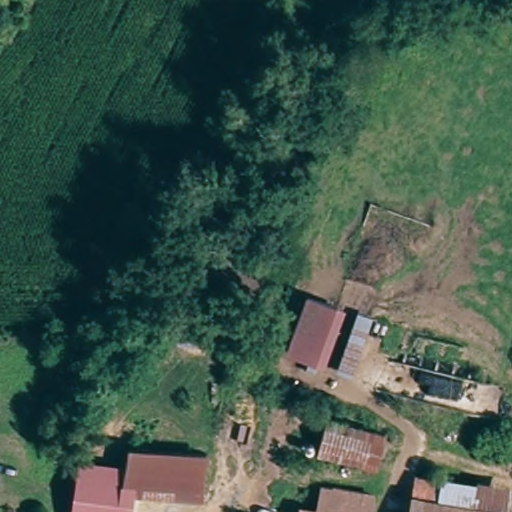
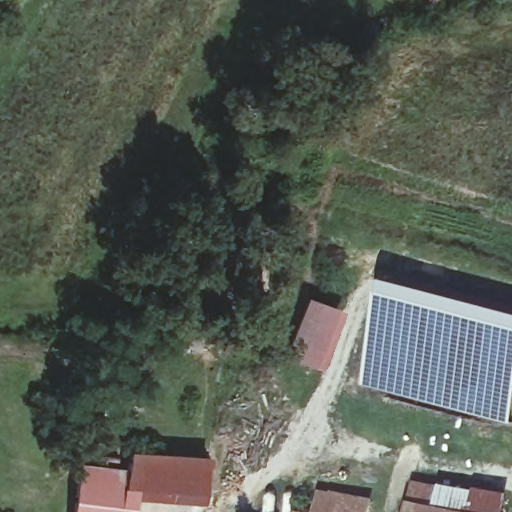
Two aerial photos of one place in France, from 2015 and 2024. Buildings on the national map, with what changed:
new [(388,275),(512,307),(512,415),(510,424),(359,385),(388,275)]
unchanged [(295,359),(310,301),(342,309),(324,367),(295,359)]
unchanged [(376,476),(279,447),(288,411),(390,437),(376,476)]
unchanged [(131,452),(199,460),(195,497),(138,488),(128,487),(129,472),(131,452)]
unchanged [(129,472),(128,487),(138,488),(134,512),(78,512),(85,467),(129,472)]
unchanged [(448,489),(445,505),(476,512),(413,512),(419,484),(448,489)]
unchanged [(295,512),(296,509),(315,511),(321,488),(375,495),(371,512),(295,512)]
unchanged [(510,512),(476,512),(445,505),(448,489),(512,500),(510,512)]

